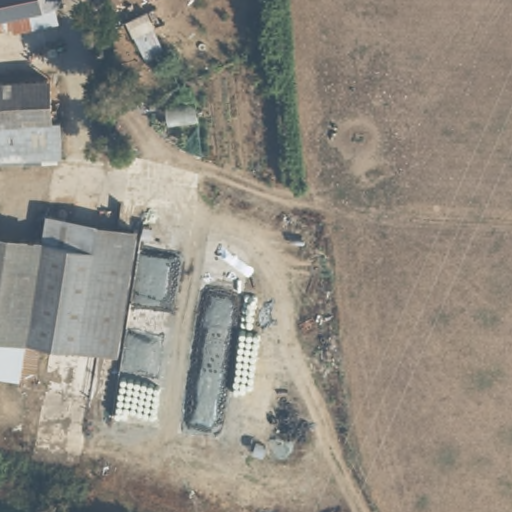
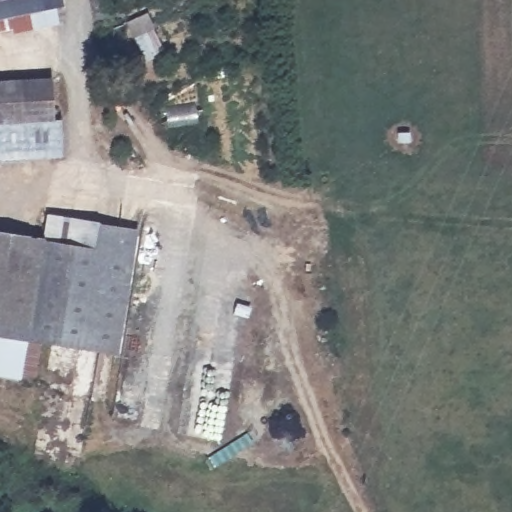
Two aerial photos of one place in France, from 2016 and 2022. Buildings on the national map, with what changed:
unchanged [(25,19),(22,8),(0,12),(0,0),(55,0),(55,2),(40,4),(42,17),(25,19)]
unchanged [(52,79),(54,155),(0,157),(0,81),(52,79)]
unchanged [(50,221),(136,235),(133,258),(47,245),(50,221)]
unchanged [(47,245),(30,342),(0,338),(0,237),(47,245)]
unchanged [(47,245),(133,258),(115,357),(30,342),(47,245)]
unchanged [(30,342),(25,376),(0,372),(0,338),(30,342)]

